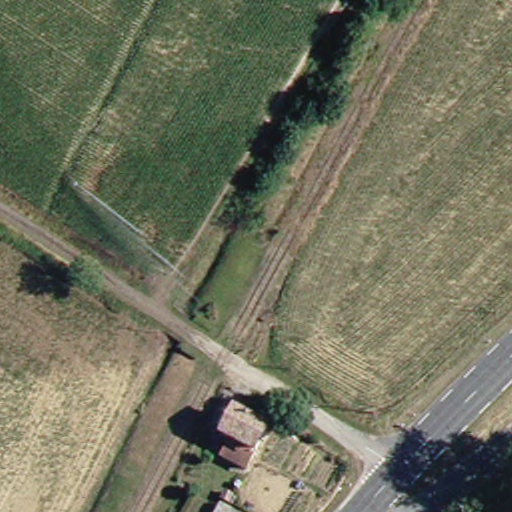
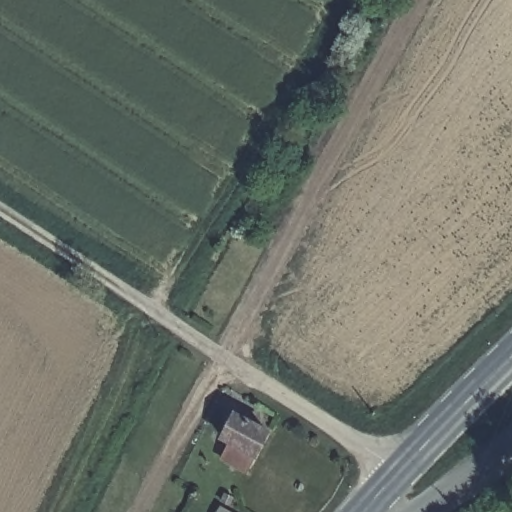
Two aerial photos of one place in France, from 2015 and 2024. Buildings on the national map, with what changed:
unchanged [(226,456),(234,441),(226,436),(241,408),(278,430),(253,471),(226,456)]
unchanged [(237,512),(228,512),(229,508),(237,512)]

